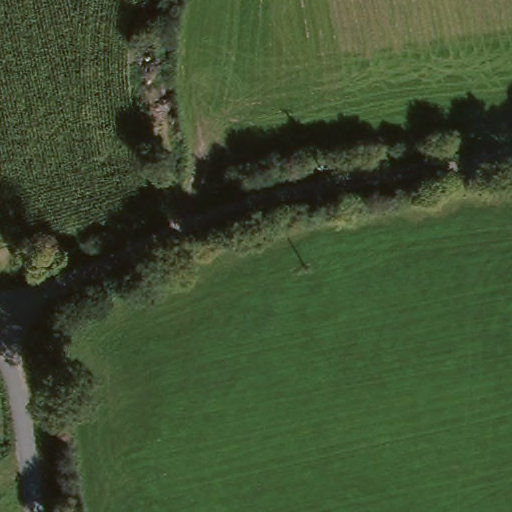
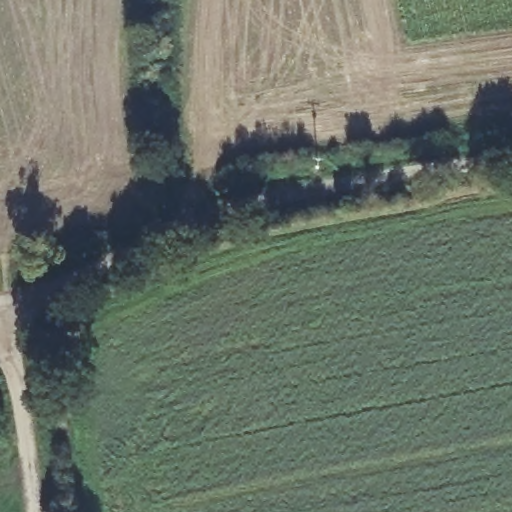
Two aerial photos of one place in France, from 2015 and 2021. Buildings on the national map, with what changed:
[]

